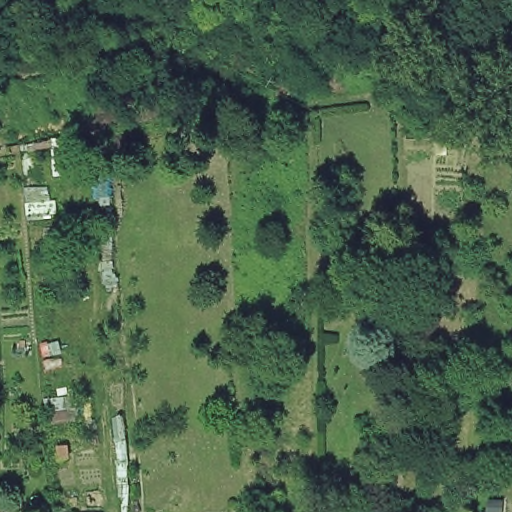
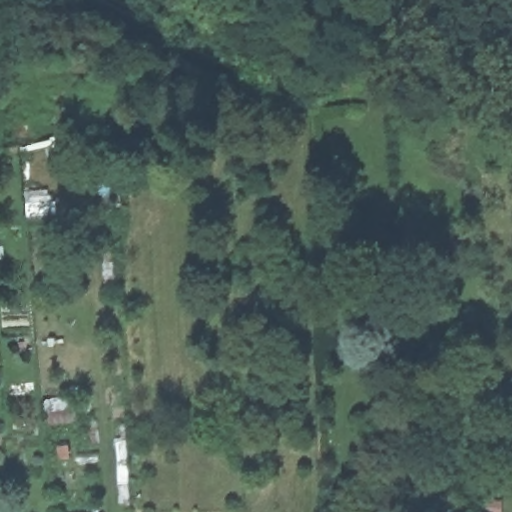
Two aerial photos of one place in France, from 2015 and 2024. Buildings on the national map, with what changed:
unchanged [(43,144),(49,225),(26,228),(18,146),(43,144)]

